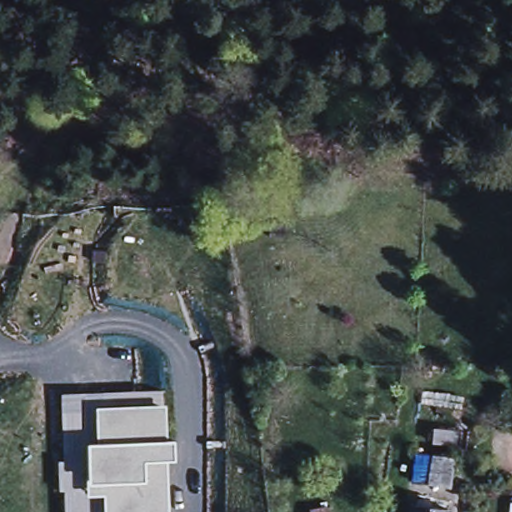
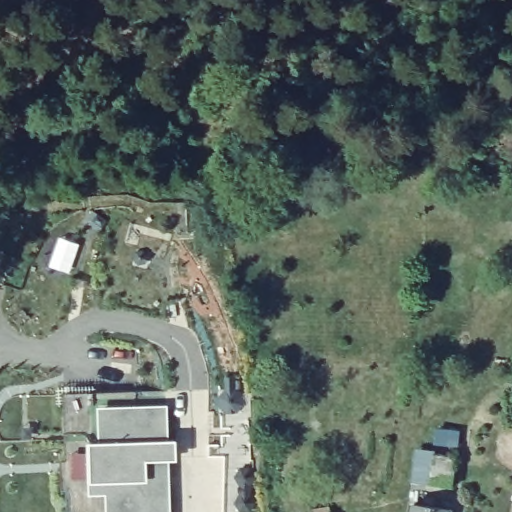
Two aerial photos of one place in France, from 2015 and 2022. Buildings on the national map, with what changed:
unchanged [(68,512),(64,396),(162,391),(170,512),(68,512)]
unchanged [(442,455),(440,485),(422,485),(422,455),(442,455)]
unchanged [(412,510),(412,500),(429,502),(427,512),(407,512),(407,510),(412,510)]
unchanged [(329,512),(312,512),(312,510),(329,507),(329,512)]

